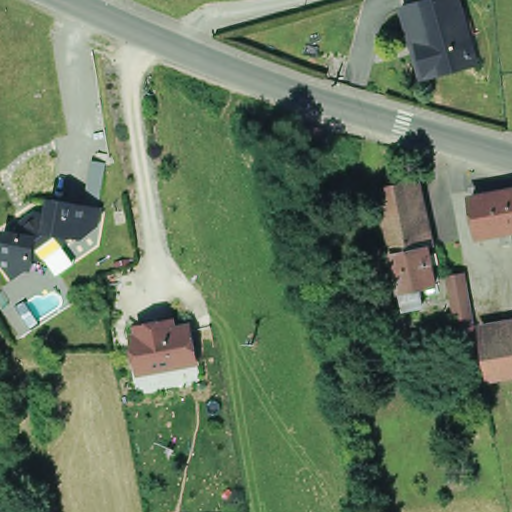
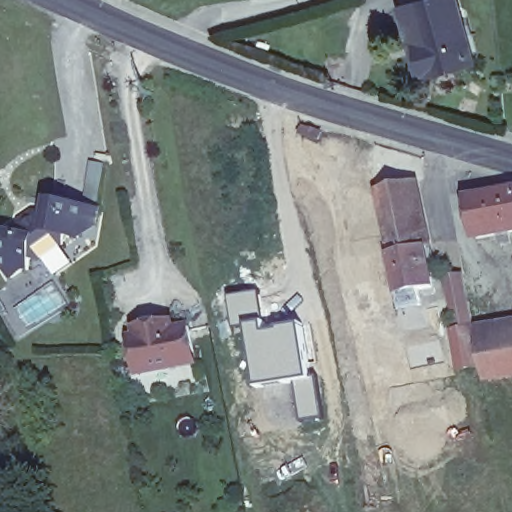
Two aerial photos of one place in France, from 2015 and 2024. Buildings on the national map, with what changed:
unchanged [(422,55),(430,54),(416,9),(446,0),(458,0),(472,44),(465,46),(471,65),(429,78),(422,55)]
unchanged [(320,143),(299,138),(302,129),(322,135),(320,143)]
unchanged [(370,190),(403,183),(417,249),(385,255),(370,190)]
unchanged [(512,197),(512,237),(480,242),(473,204),(512,197)]
unchanged [(63,244),(40,259),(32,259),(30,270),(24,269),(12,278),(3,265),(0,265),(0,253),(4,233),(19,235),(21,223),(35,214),(47,215),(50,202),(85,208),(99,210),(95,227),(80,238),(79,238),(65,235),(63,244)]
unchanged [(385,255),(417,249),(425,287),(412,289),(415,304),(395,308),(383,255),(385,255)]
unchanged [(455,308),(450,309),(445,271),(462,268),(472,322),(475,335),(478,359),(457,364),(450,325),(457,324),(455,308)]
new [(259,292),(264,316),(236,322),(231,295),(259,292)]
unchanged [(175,326),(190,323),(199,363),(137,377),(130,335),(134,334),(132,325),(174,317),(175,326)]
new [(302,421),(297,384),(259,389),(247,325),(265,322),(267,332),(306,324),(315,381),(322,418),(302,421)]
unchanged [(477,335),(512,329),(512,369),(484,374),(477,335)]

